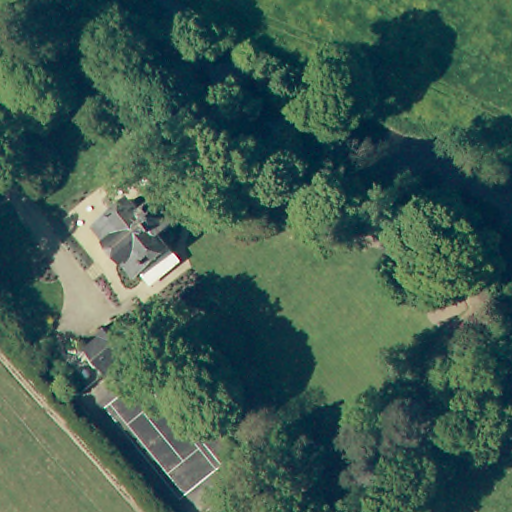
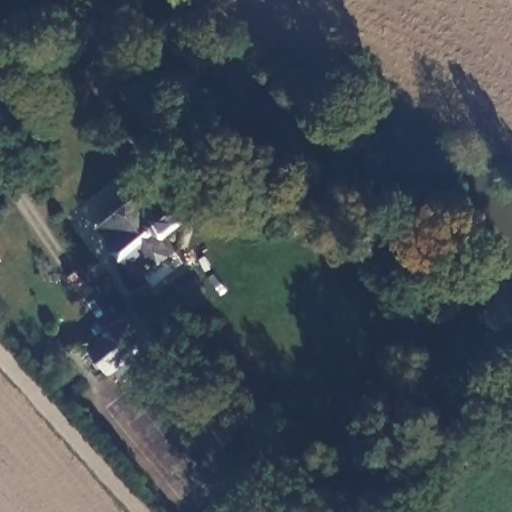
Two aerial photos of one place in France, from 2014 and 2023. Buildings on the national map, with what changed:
unchanged [(144,213),(161,200),(180,221),(164,235),(175,251),(140,278),(110,244),(95,229),(112,217),(132,199),(144,213)]
unchanged [(100,352),(115,339),(112,337),(130,322),(132,325),(138,320),(147,313),(167,338),(158,346),(120,376),(100,352)]

